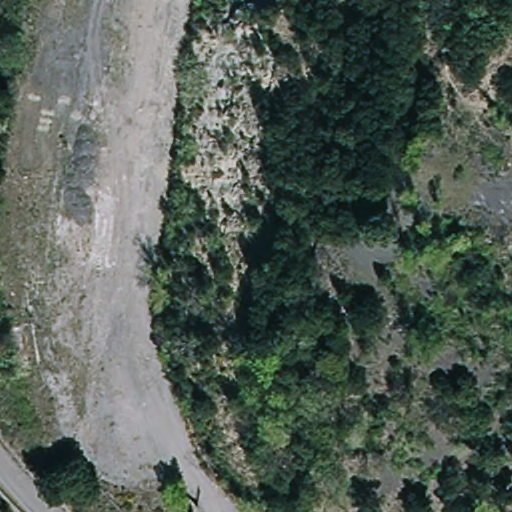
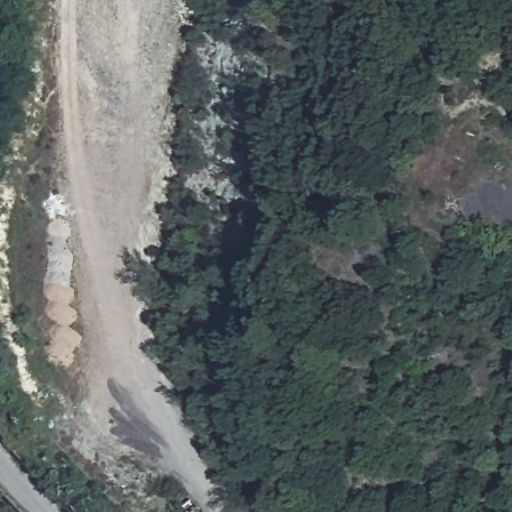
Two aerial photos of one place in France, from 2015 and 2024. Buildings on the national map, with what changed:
unchanged [(157,491),(173,507),(168,512),(160,512),(148,499),(157,491)]

